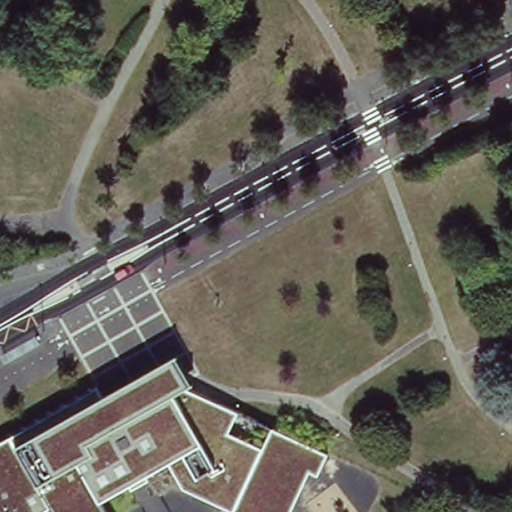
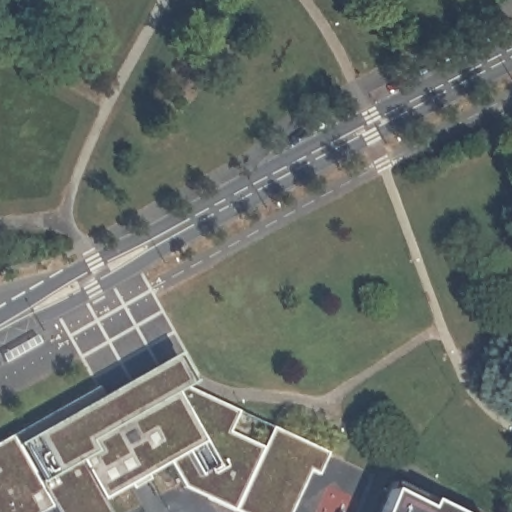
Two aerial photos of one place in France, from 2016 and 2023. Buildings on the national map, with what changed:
unchanged [(236,504),(207,492),(184,483),(169,457),(102,495),(112,512),(58,512),(52,502),(35,512),(0,512),(0,438),(97,382),(116,416),(180,380),(327,449),(317,470),(297,512),(256,512),(236,504)]
new [(392,482),(452,512),(379,512),(392,482)]

